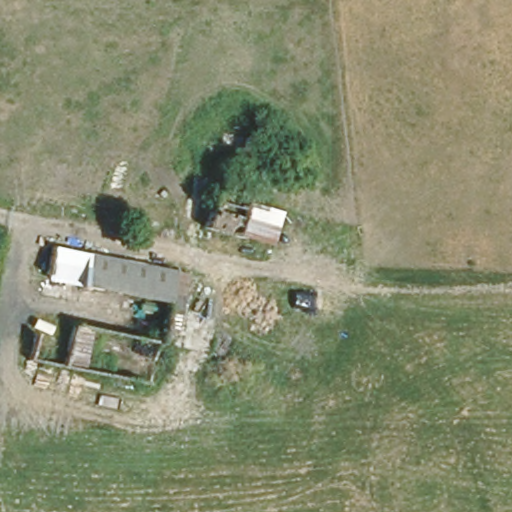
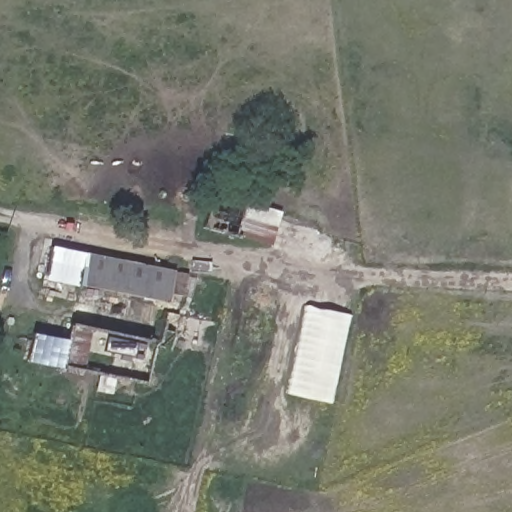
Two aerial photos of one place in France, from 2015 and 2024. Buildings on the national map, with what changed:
unchanged [(179,233),(185,212),(188,213),(200,171),(263,189),(257,211),(259,212),(248,253),(179,233)]
unchanged [(78,270),(80,251),(177,269),(170,302),(74,285),(78,270)]
new [(307,304),(353,315),(334,404),(287,393),(307,304)]
new [(73,325),(94,329),(84,371),(29,359),(34,334),(69,341),(73,325)]

